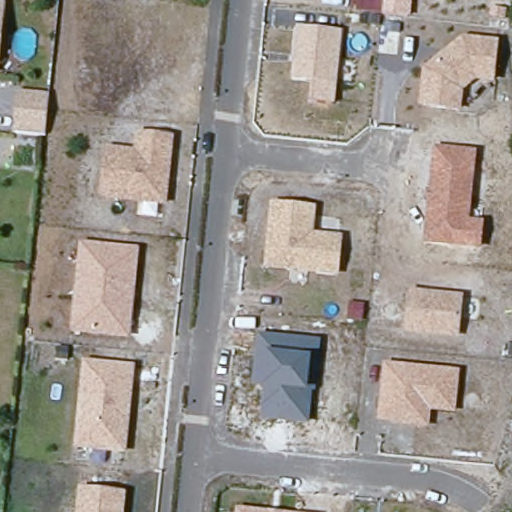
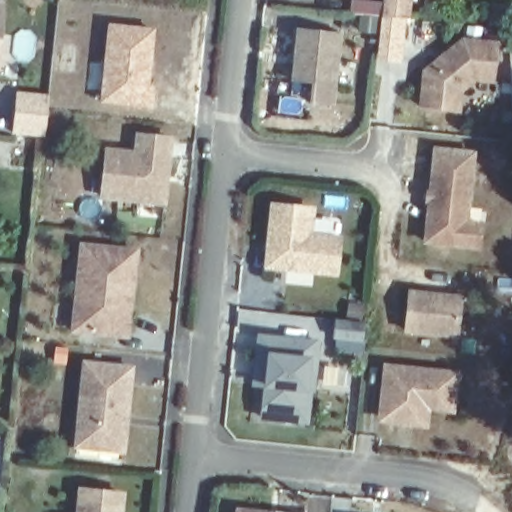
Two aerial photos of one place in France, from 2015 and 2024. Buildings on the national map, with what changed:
new [(386,0),(412,0),(410,18),(402,17),(385,15),(386,0)]
unchanged [(5,10),(0,46),(0,9),(5,10)]
new [(107,22),(156,27),(152,108),(99,102),(107,22)]
unchanged [(310,105),(311,86),(291,83),(296,28),(343,34),(336,107),(310,105)]
unchanged [(418,109),(421,71),(463,39),(498,43),(495,84),(476,83),(463,94),(463,114),(418,109)]
unchanged [(16,100),(17,90),(48,94),(47,102),(42,136),(13,133),(16,100)]
unchanged [(107,154),(136,157),(138,136),(168,140),(162,220),(139,220),(139,202),(104,198),(107,154)]
unchanged [(424,244),(433,147),(477,152),(470,220),(484,222),(482,250),(424,244)]
unchanged [(264,269),(270,203),(316,207),(315,233),(343,237),(340,276),(264,269)]
unchanged [(70,333),(79,243),(140,250),(131,340),(70,333)]
unchanged [(405,332),(409,291),(465,297),(460,339),(405,332)]
unchanged [(260,419),(263,387),(252,387),(258,334),(321,342),(317,394),(312,395),(310,425),(260,419)]
unchanged [(74,449),(81,361),(136,368),(127,455),(74,449)]
unchanged [(377,424),(383,364),(460,372),(456,415),(430,413),(430,429),(377,424)]
unchanged [(127,493),(125,512),(75,512),(77,486),(127,493)]
unchanged [(275,512),(235,512),(236,508),(275,512)]

